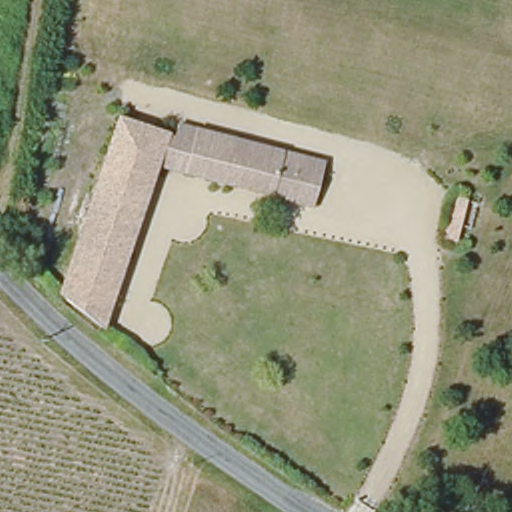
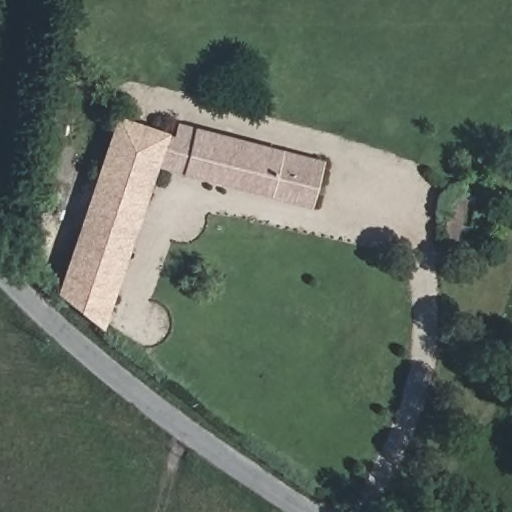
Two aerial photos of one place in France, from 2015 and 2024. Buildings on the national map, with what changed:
unchanged [(121,117),(175,135),(177,124),(322,163),(312,208),(155,163),(104,328),(67,295),(121,117)]
unchanged [(469,202),(457,247),(442,242),(454,197),(469,202)]

